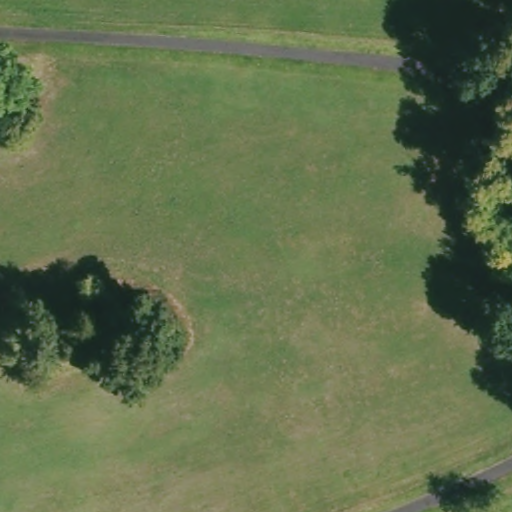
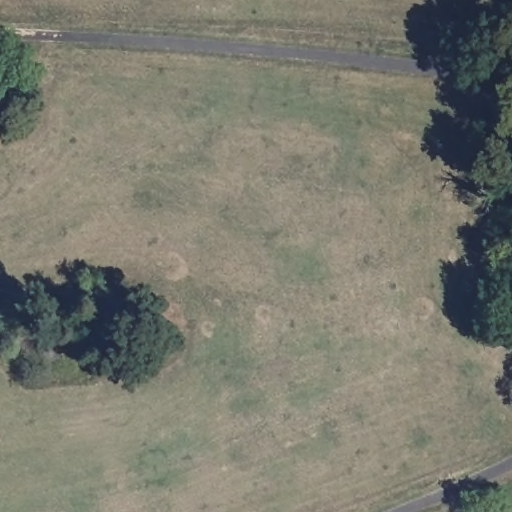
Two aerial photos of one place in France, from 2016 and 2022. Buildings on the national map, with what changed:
[]

